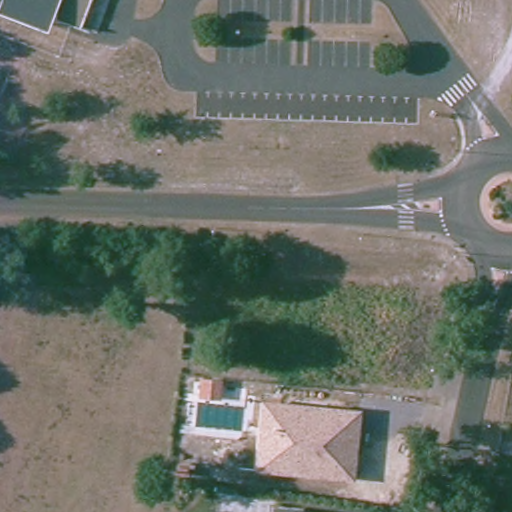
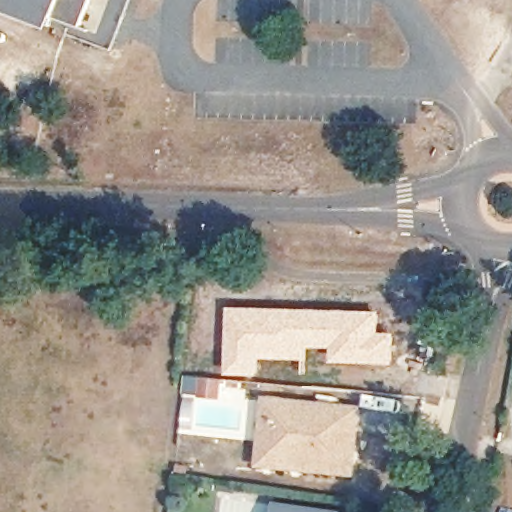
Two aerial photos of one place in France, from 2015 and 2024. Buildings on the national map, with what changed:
unchanged [(0,2),(1,0),(91,0),(82,25),(67,20),(64,27),(0,2)]
new [(227,305),(380,310),(380,331),(395,331),(393,363),(332,362),(331,348),(308,347),(307,359),(260,357),(259,375),(226,373),(227,305)]
new [(183,374),(222,378),(220,398),(181,393),(183,374)]
unchanged [(263,456),(266,425),(267,405),(282,406),(311,409),(362,414),(356,480),(303,475),(302,475),(262,471),(263,456)]
unchanged [(276,512),(277,506),(288,508),(288,512),(276,512)]
unchanged [(321,512),(288,512),(288,508),(298,509),(321,512)]

